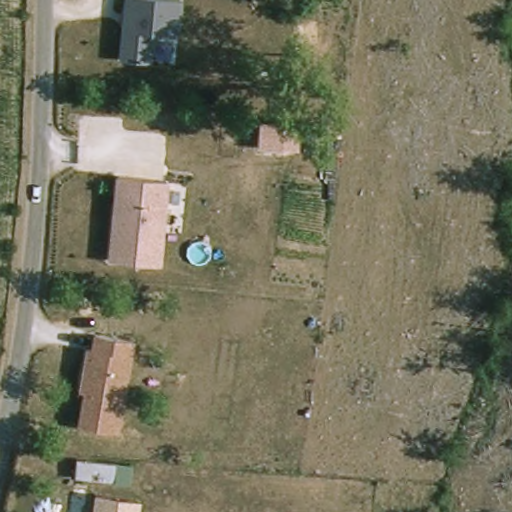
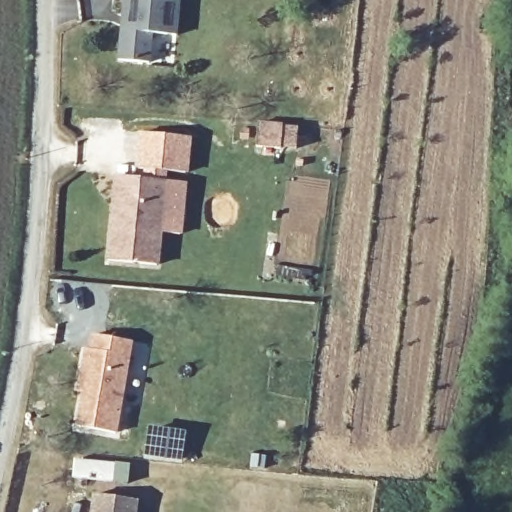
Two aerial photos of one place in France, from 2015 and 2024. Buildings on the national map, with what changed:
unchanged [(181,36),(156,34),(154,61),(119,57),(124,0),(184,0),(181,36)]
unchanged [(288,122),(286,149),(258,146),(260,120),(288,122)]
new [(138,132),(193,137),(190,173),(135,169),(138,132)]
unchanged [(170,181),(162,267),(109,262),(117,175),(170,181)]
unchanged [(136,340),(121,432),(79,426),(84,393),(79,392),(87,348),(92,349),(95,332),(136,340)]
unchanged [(134,464),(132,483),(73,478),(75,457),(134,464)]
unchanged [(139,512),(92,512),(94,494),(140,500),(139,512)]

